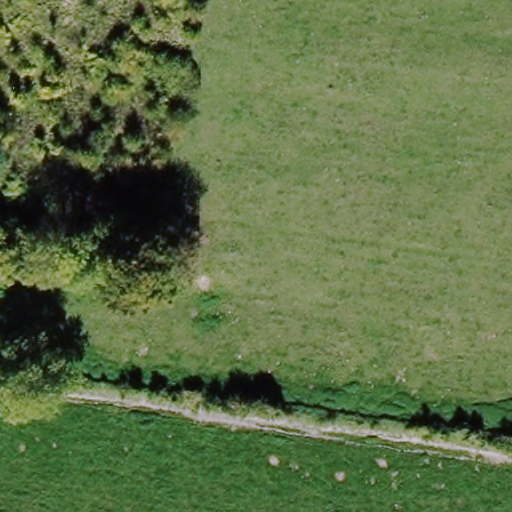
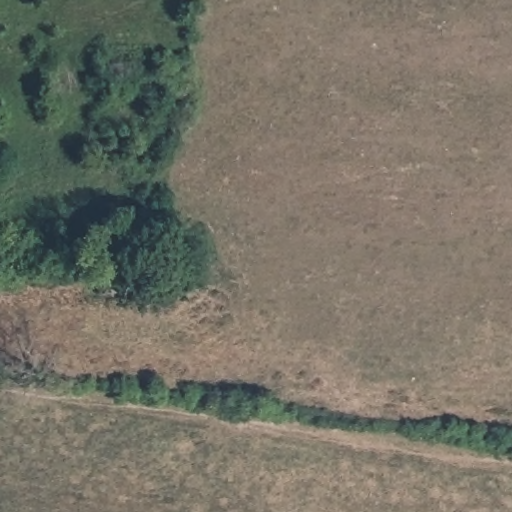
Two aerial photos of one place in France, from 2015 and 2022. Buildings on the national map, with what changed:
[]

